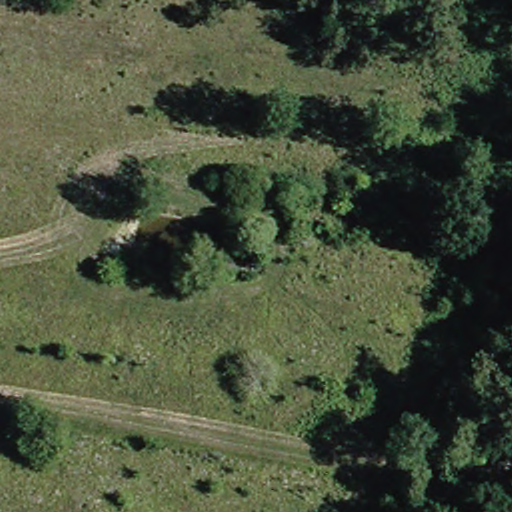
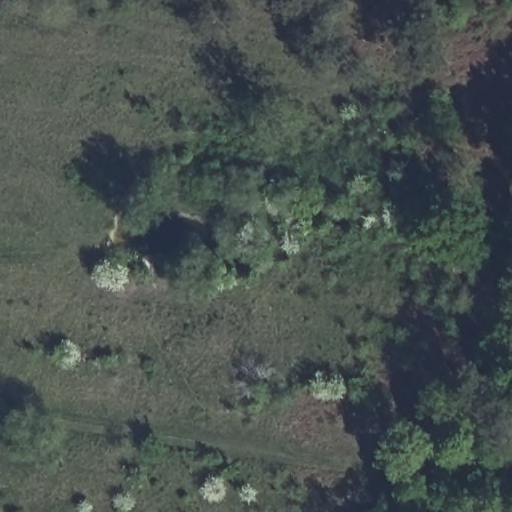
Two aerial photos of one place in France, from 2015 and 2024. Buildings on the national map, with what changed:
[]

